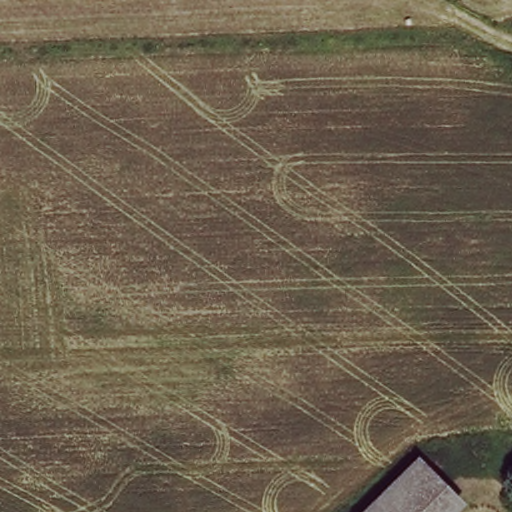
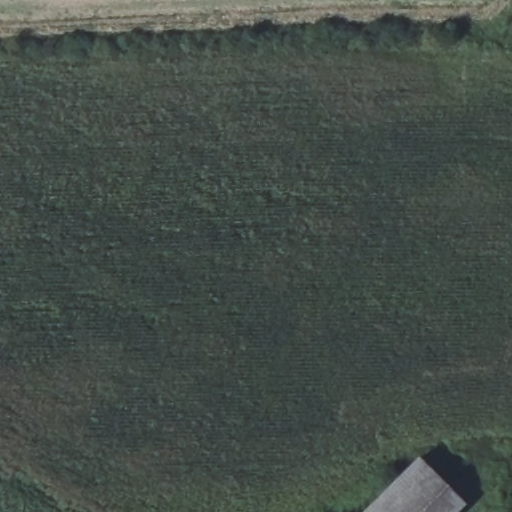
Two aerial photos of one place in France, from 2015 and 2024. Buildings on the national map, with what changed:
unchanged [(463,497),(451,512),(367,512),(413,456),(440,477),(463,497)]

